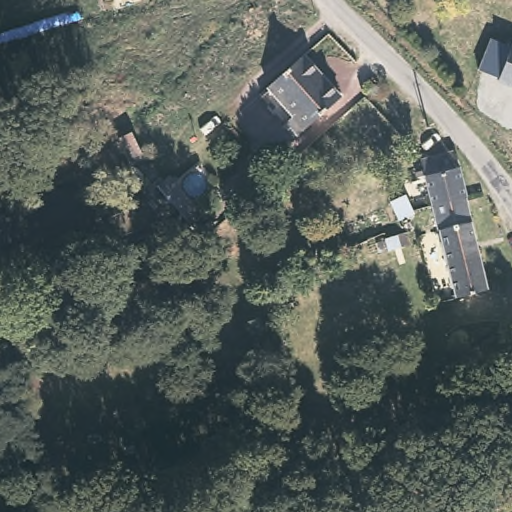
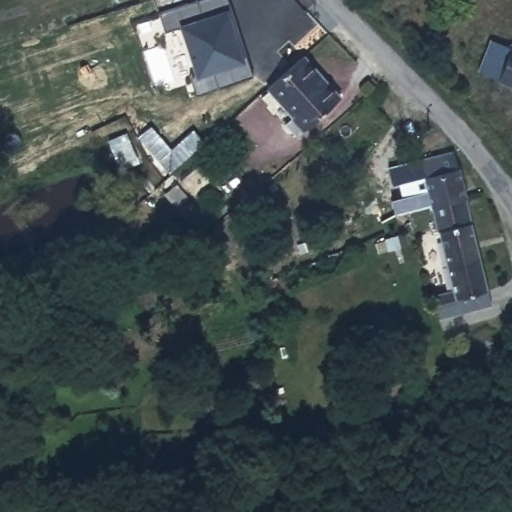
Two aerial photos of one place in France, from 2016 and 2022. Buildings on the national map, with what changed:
new [(219,87),(212,68),(197,73),(182,25),(165,30),(159,11),(197,0),(199,0),(205,17),(227,11),(241,50),(246,48),(254,76),(219,87)]
unchanged [(512,44),(512,86),(495,79),(510,44),(512,44)]
unchanged [(342,96),(298,135),(286,121),(293,115),(270,87),(306,55),(342,96)]
unchanged [(428,206),(421,177),(412,181),(412,173),(420,170),(417,161),(449,152),(457,172),(463,197),(428,206)]
unchanged [(204,214),(192,222),(159,184),(172,176),(204,214)]
unchanged [(388,202),(402,196),(409,212),(411,215),(397,221),(396,217),(388,202)]
unchanged [(463,197),(477,257),(443,266),(428,206),(463,197)]
unchanged [(477,257),(486,291),(452,298),(443,266),(477,257)]

